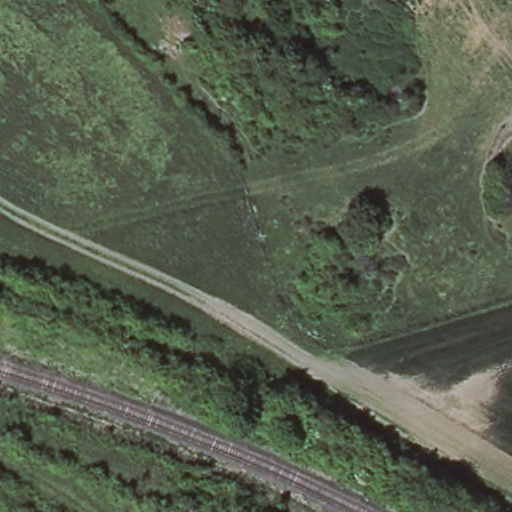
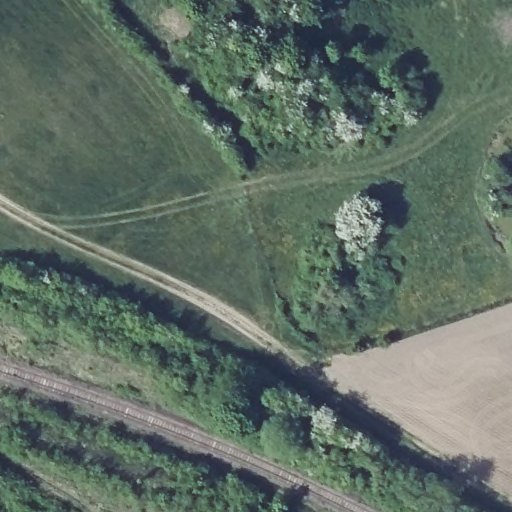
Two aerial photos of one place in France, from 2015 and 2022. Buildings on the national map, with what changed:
unchanged [(238,31),(204,0),(239,0),(255,15),(238,31)]

